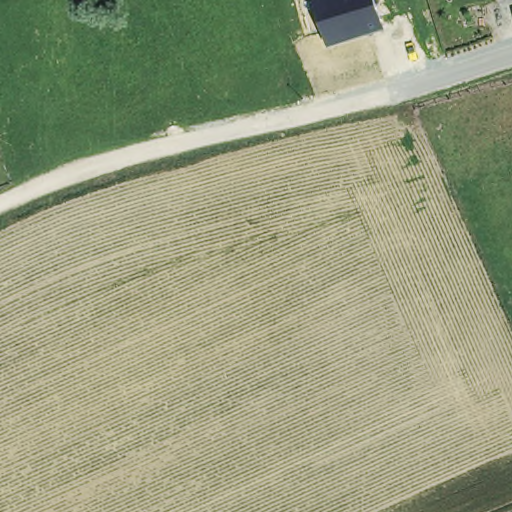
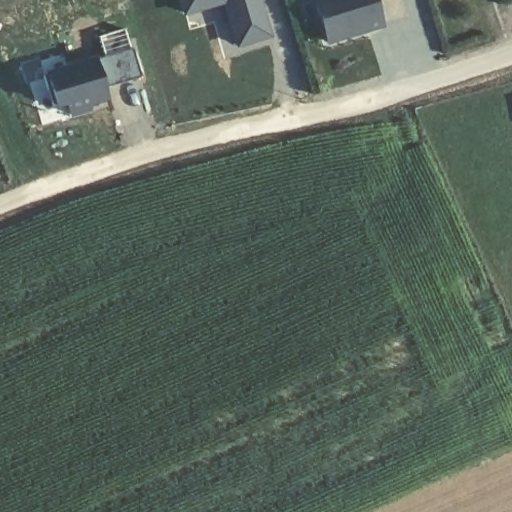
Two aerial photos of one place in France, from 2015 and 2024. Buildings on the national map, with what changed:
new [(273,39),(233,50),(219,8),(183,19),(178,0),(262,0),(273,39)]
unchanged [(385,29),(326,47),(310,0),(376,0),(385,29)]
new [(141,76),(104,87),(109,107),(69,119),(66,105),(51,109),(42,73),(131,49),(141,76)]

